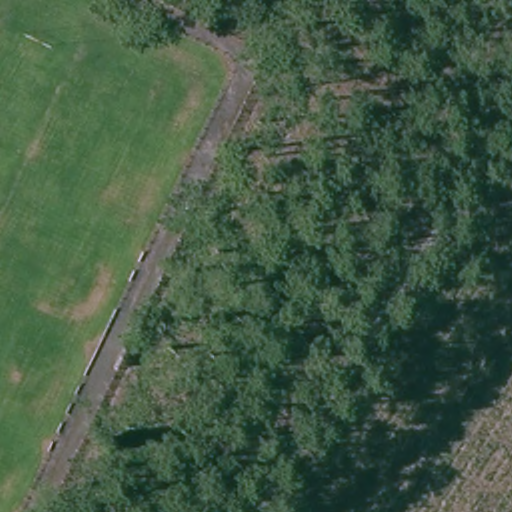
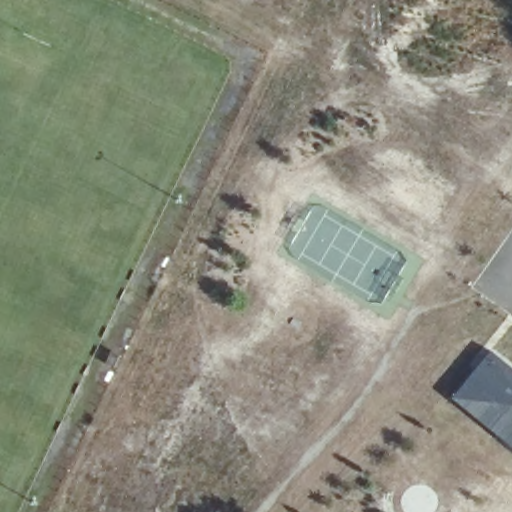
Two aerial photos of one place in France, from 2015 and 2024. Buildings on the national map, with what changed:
new [(512,446),(453,398),(492,351),(512,367),(512,446)]

